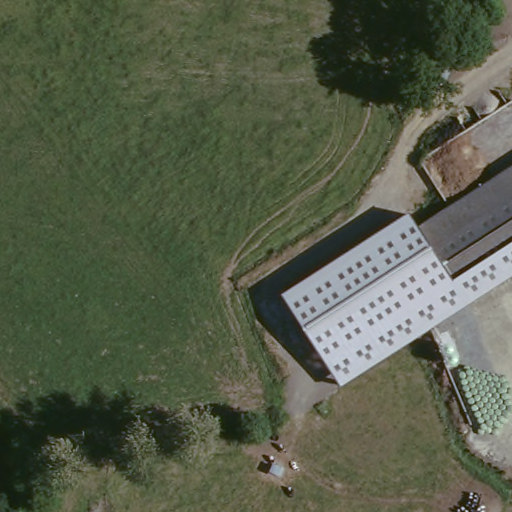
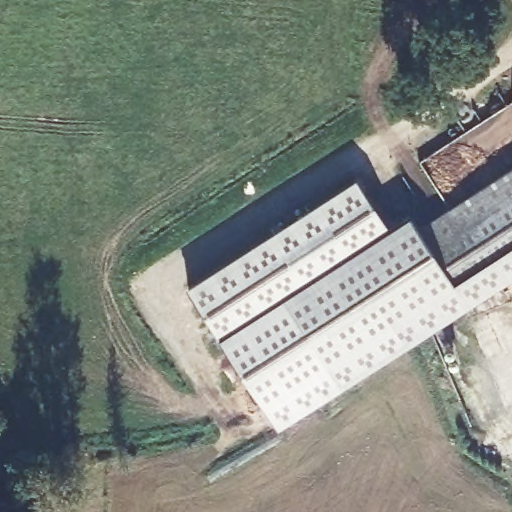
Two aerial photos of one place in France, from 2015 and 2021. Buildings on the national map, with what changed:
unchanged [(282,297),(409,215),(418,228),(512,167),(512,278),(341,389),(282,297)]
new [(277,429),(186,285),(356,177),(389,229),(282,297),(341,389),(277,429)]

